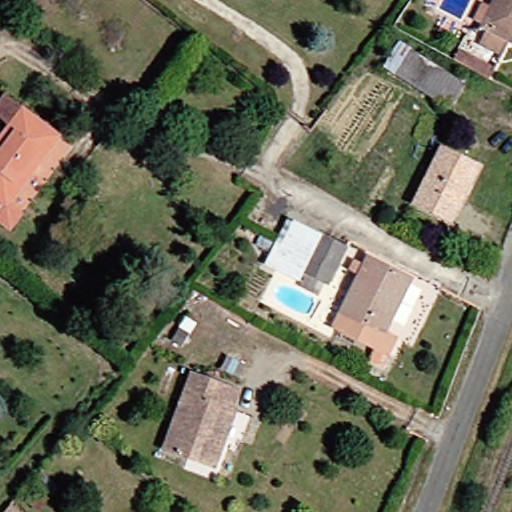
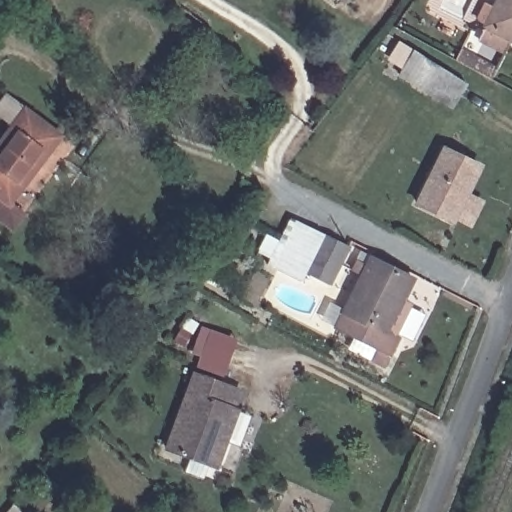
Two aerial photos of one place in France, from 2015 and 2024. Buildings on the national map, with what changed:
unchanged [(490,0),(512,0),(512,39),(511,42),(476,24),(490,0)]
unchanged [(439,101),(387,75),(404,44),(456,71),(439,101)]
unchanged [(6,128),(0,122),(0,100),(3,97),(52,140),(0,200),(0,135),(6,128)]
unchanged [(445,222),(406,198),(440,143),(478,167),(445,222)]
unchanged [(16,221),(4,235),(0,232),(0,208),(16,221)]
unchanged [(288,228),(314,239),(297,277),(271,266),(288,228)]
unchanged [(339,249),(321,287),(297,277),(314,239),(339,249)]
unchanged [(391,351),(359,338),(335,327),(362,261),(407,281),(391,322),(401,326),(391,351)]
new [(196,375),(210,331),(237,339),(220,384),(196,375)]
unchanged [(222,440),(212,466),(160,447),(188,372),(230,388),(225,404),(234,407),(222,440)]

